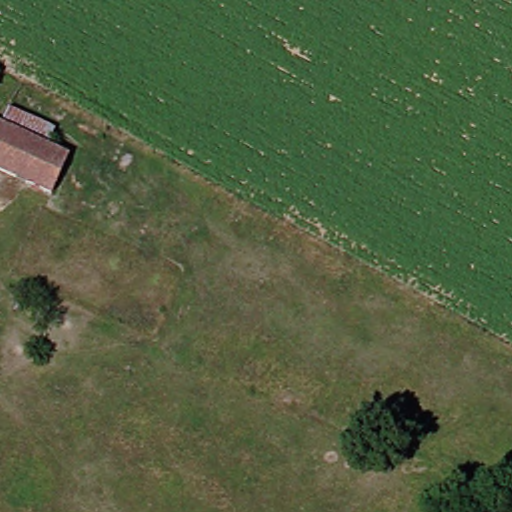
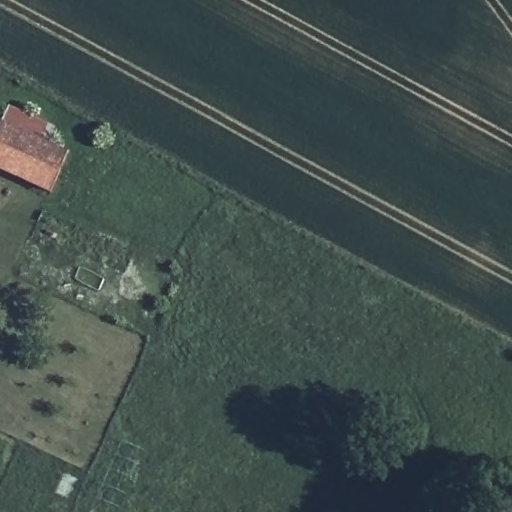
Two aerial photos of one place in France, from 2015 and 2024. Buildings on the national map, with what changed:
unchanged [(8,122),(16,102),(60,122),(51,142),(8,122)]
unchanged [(0,168),(0,119),(8,122),(51,142),(74,151),(56,192),(0,168)]

